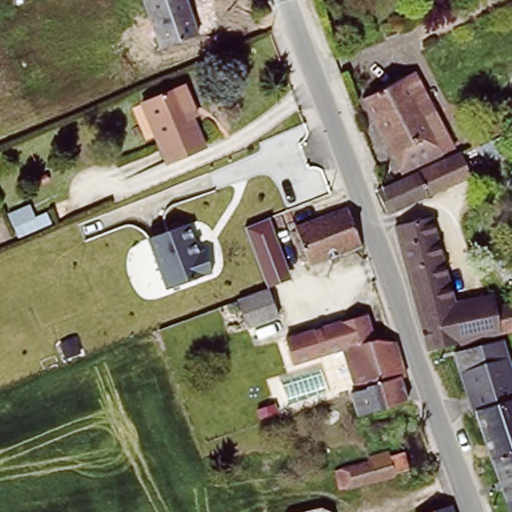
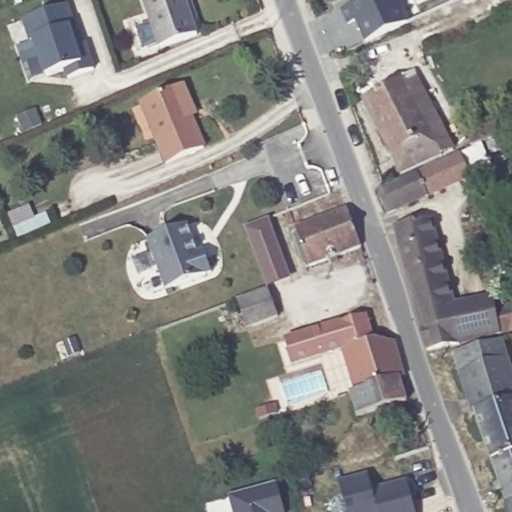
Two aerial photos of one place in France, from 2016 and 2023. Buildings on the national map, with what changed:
unchanged [(153,32),(139,0),(182,0),(191,19),(199,39),(163,55),(153,32)]
new [(367,42),(357,21),(349,24),(341,9),(359,0),(398,0),(409,24),(367,42)]
new [(68,79),(66,70),(45,77),(33,41),(30,42),(23,20),(68,5),(84,44),(86,43),(95,70),(68,79)]
unchanged [(359,107),(398,86),(437,164),(399,183),(359,107)]
unchanged [(161,161),(155,146),(142,111),(185,95),(192,115),(196,122),(192,124),(193,128),(200,146),(161,161)]
unchanged [(478,153),(481,162),(463,171),(466,182),(388,222),(378,199),(478,153)]
unchanged [(290,228),(331,212),(343,208),(356,247),(346,252),(306,267),(290,228)]
unchanged [(195,237),(193,237),(199,248),(205,245),(215,267),(169,287),(148,237),(187,219),(195,237)]
unchanged [(269,219),(291,279),(267,287),(245,228),(269,219)]
unchanged [(449,295),(465,292),(468,302),(488,298),(491,311),(509,307),(512,320),(512,335),(430,357),(409,286),(392,234),(427,222),(449,295)]
unchanged [(277,316),(248,328),(236,301),(267,289),(277,316)]
unchanged [(344,345),(294,360),(285,333),(376,306),(385,331),(400,372),(358,386),(344,345)]
unchanged [(477,423),(472,424),(451,359),(501,346),(512,387),(512,509),(506,511),(477,423)]
unchanged [(400,372),(407,393),(366,408),(358,386),(400,372)]
demolished [(387,447),(389,455),(401,452),(406,469),(392,472),(394,476),(342,489),(336,469),(368,460),(367,454),(387,447)]
new [(340,481),(370,473),(373,488),(408,480),(416,512),(348,512),(340,481)]
new [(228,496),(274,482),(282,512),(232,512),(228,496)]
demolished [(446,507),(448,512),(428,512),(446,507)]
unchanged [(506,511),(512,509),(512,512),(506,512),(506,511)]

